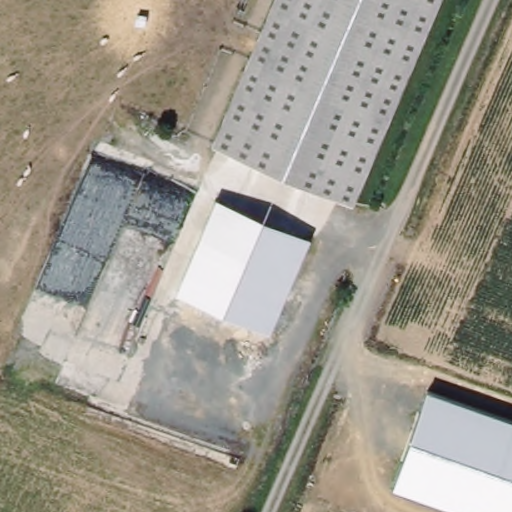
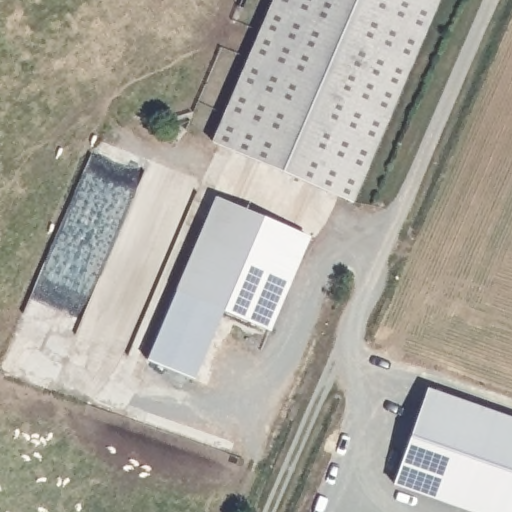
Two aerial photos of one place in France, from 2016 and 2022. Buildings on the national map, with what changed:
unchanged [(274,0),(439,0),(352,201),(212,142),(274,0)]
unchanged [(214,201),(311,242),(271,333),(176,294),(214,201)]
new [(223,313),(194,379),(148,360),(176,294),(223,313)]
unchanged [(512,419),(512,512),(472,512),(393,484),(426,389),(512,419)]

